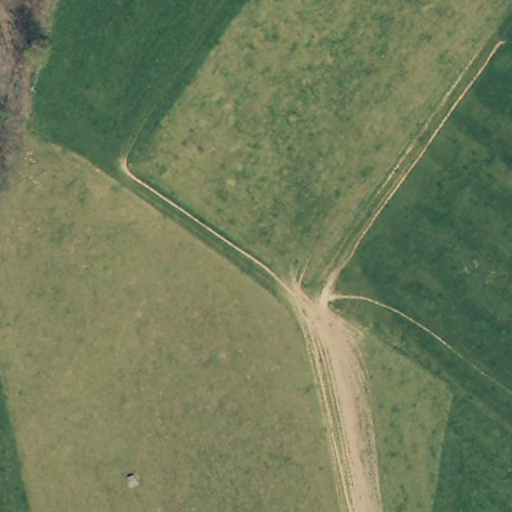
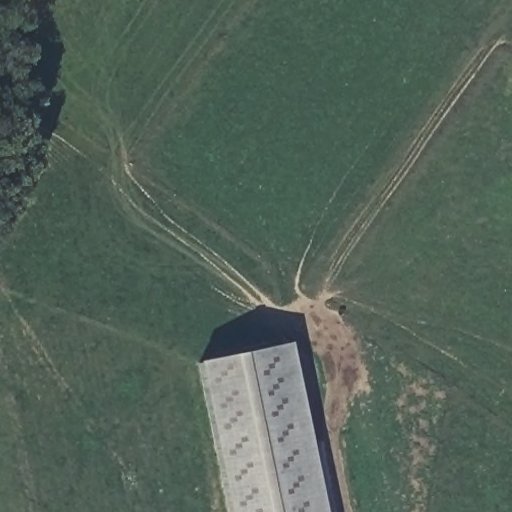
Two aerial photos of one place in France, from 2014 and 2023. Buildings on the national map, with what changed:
new [(325,512),(228,512),(197,361),(290,343),(325,512)]

